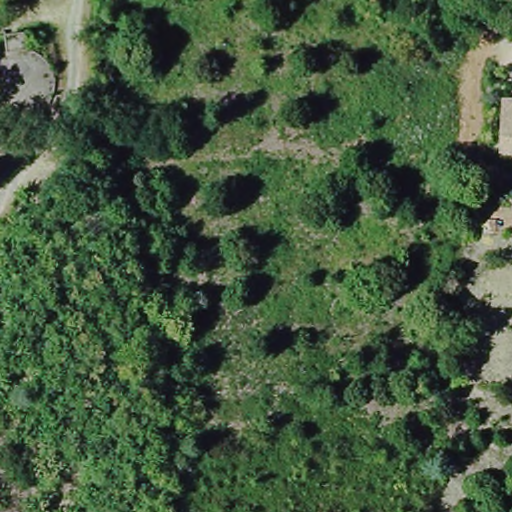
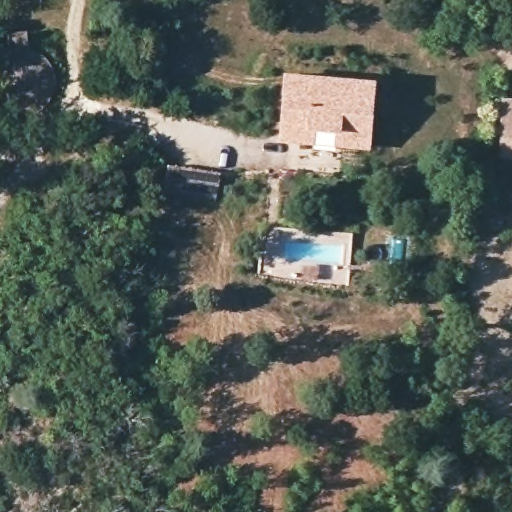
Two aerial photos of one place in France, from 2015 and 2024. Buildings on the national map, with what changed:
demolished [(462,46),(492,47),(489,65),(462,63),(462,46)]
new [(370,149),(336,146),(337,130),(315,128),(314,145),(279,141),(285,72),(379,79),(370,149)]
unchanged [(512,159),(492,156),(501,84),(512,86),(512,159)]
new [(218,174),(212,203),(163,195),(167,168),(218,174)]

